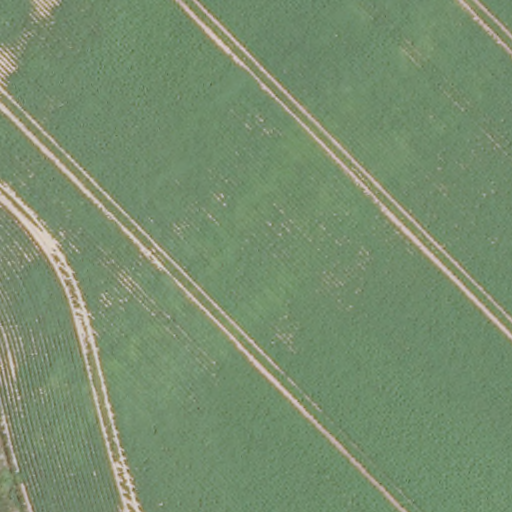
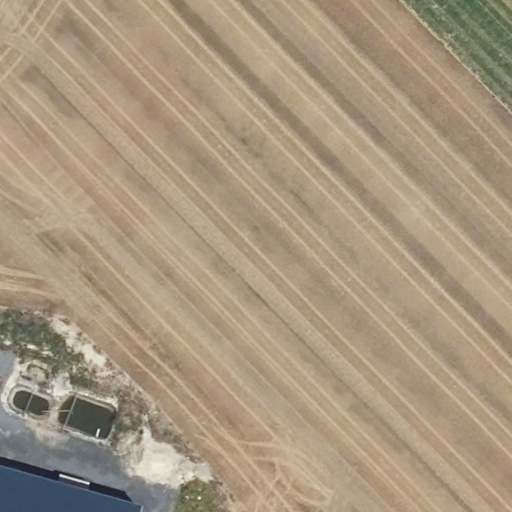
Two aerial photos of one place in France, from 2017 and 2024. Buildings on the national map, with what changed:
new [(136,512),(0,512),(0,473),(136,512)]

